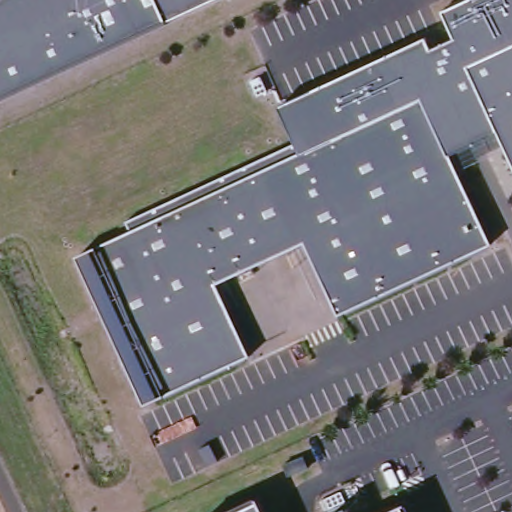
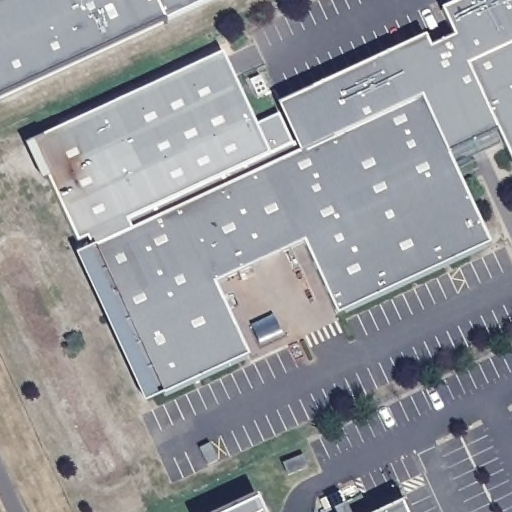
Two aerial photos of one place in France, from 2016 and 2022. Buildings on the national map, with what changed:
unchanged [(1,101),(0,99),(0,0),(217,0),(167,24),(1,101)]
unchanged [(499,135),(450,156),(491,246),(340,315),(307,246),(216,286),(250,357),(164,397),(147,406),(79,258),(96,250),(132,233),(128,223),(299,146),(282,109),(429,42),(434,52),(457,40),(445,12),(473,0),(512,0),(512,162),(499,135)]
new [(87,239),(79,243),(28,143),(224,52),(256,124),(282,109),(299,146),(128,223),(132,233),(96,250),(94,251),(87,239)]
unchanged [(230,310),(217,283),(227,278),(233,293),(229,295),(235,307),(230,310)]
unchanged [(208,465),(200,448),(209,443),(218,460),(208,465)]
unchanged [(300,457),(305,468),(286,477),(281,466),(300,457)]
unchanged [(261,501),(266,512),(236,512),(261,501)]
unchanged [(405,505),(408,512),(388,512),(405,505)]

